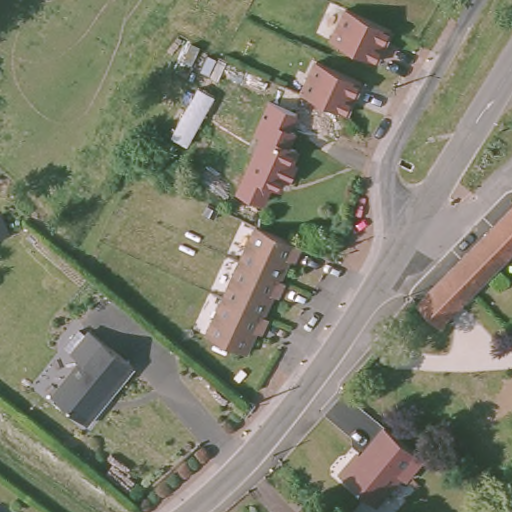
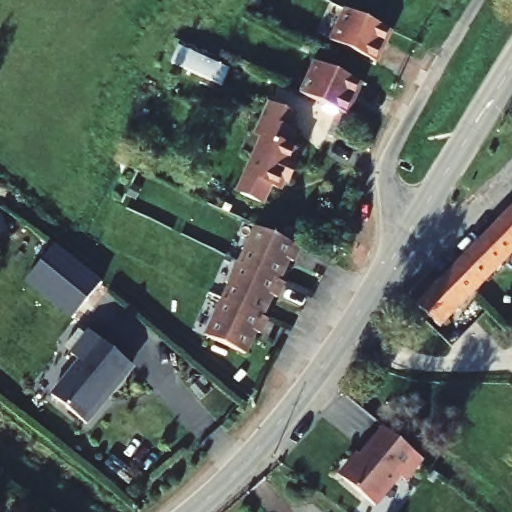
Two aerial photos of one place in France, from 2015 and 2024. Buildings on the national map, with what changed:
unchanged [(392,26),(377,58),(331,37),(346,5),(392,26)]
unchanged [(362,84),(347,116),(302,95),(316,63),(362,84)]
unchanged [(294,124),(288,138),(297,142),(291,156),(296,158),(290,173),(284,171),(279,181),(271,177),(263,194),(242,185),(250,167),(248,166),(265,129),(256,125),(263,110),(294,124)]
unchanged [(438,330),(415,308),(512,209),(512,263),(508,260),(438,330)]
unchanged [(298,258),(294,255),(284,277),(288,279),(281,293),(277,291),(267,313),(271,315),(265,329),(260,327),(249,350),(210,331),(261,223),(305,243),(298,258)]
new [(26,282),(57,245),(103,283),(73,320),(26,282)]
unchanged [(102,409),(104,410),(89,429),(54,400),(83,366),(74,359),(93,336),(134,370),(102,409)]
unchanged [(360,455),(383,427),(425,461),(407,482),(403,479),(376,509),(337,475),(356,453),(360,455)]

